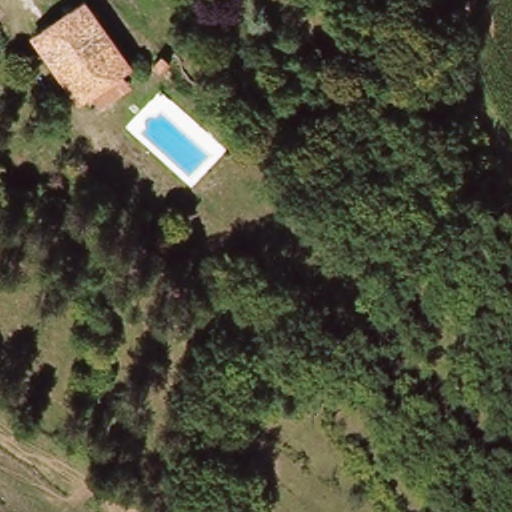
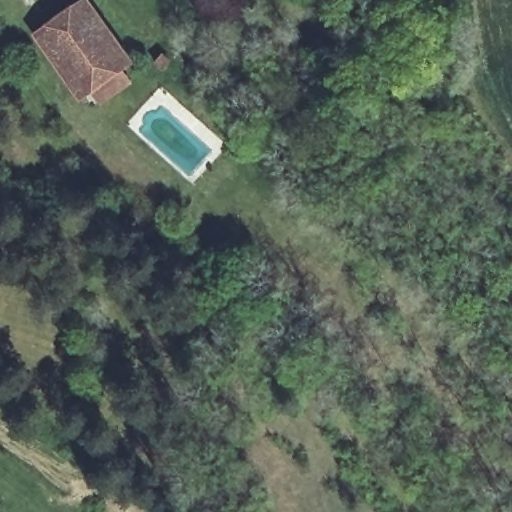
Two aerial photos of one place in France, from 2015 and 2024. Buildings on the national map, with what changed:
unchanged [(90,4),(91,7),(124,68),(71,97),(44,39),(42,32),(90,4)]

